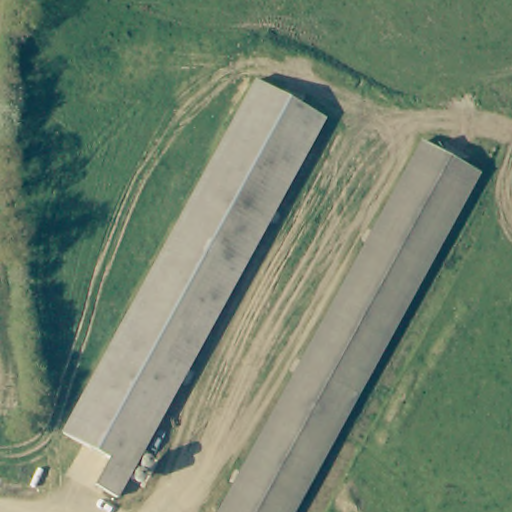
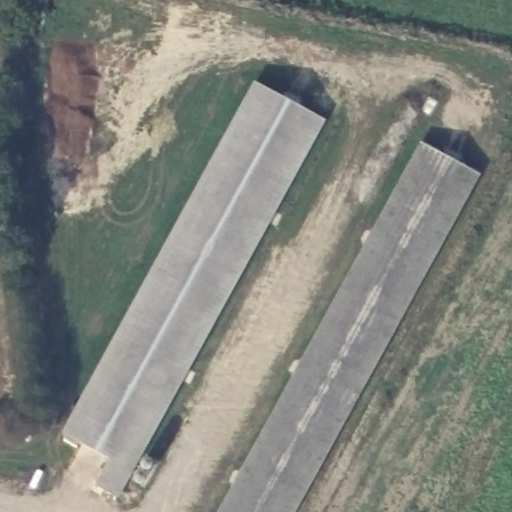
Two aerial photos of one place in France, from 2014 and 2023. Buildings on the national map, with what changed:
unchanged [(100,486),(111,467),(116,460),(69,434),(262,83),(327,119),(131,478),(121,497),(100,486)]
unchanged [(426,145),(479,173),(296,512),(227,512),(426,145)]

